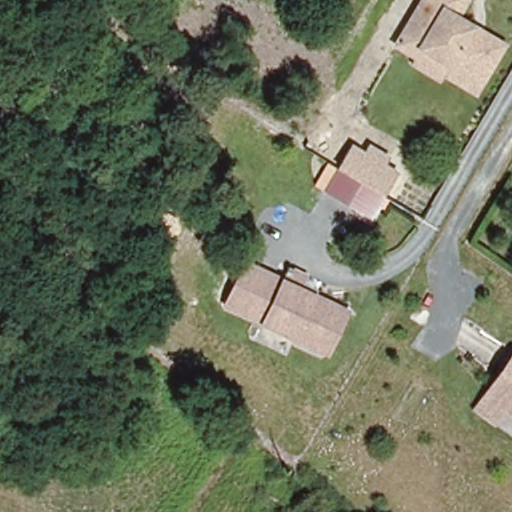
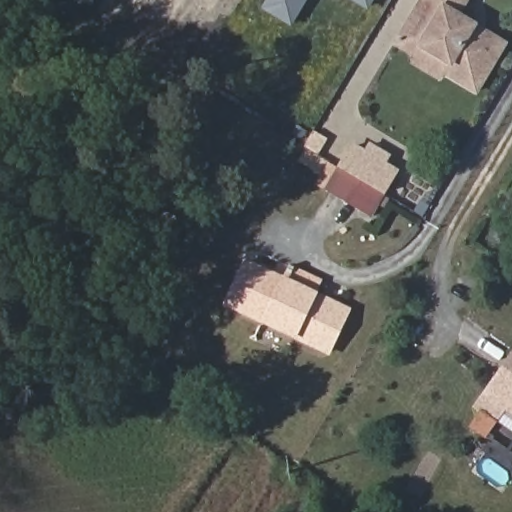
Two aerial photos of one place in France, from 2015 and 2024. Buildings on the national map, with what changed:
new [(291,26),(261,9),(266,0),(307,0),(291,26)]
new [(367,10),(349,0),(373,0),(367,10)]
unchanged [(425,0),(468,0),(460,15),(507,43),(484,82),(404,35),(425,0)]
unchanged [(484,82),(479,91),(446,71),(443,78),(416,62),(420,56),(399,44),(404,35),(484,82)]
unchanged [(363,154),(368,146),(368,145),(387,156),(386,158),(382,165),(394,172),(382,194),(345,173),(338,169),(351,147),(363,154)]
unchanged [(337,168),(338,169),(345,173),(382,194),(383,194),(370,217),(325,191),(337,168)]
unchanged [(281,269),(300,277),(296,286),(310,292),(308,297),(341,311),(322,354),(219,308),(238,266),(275,282),(281,269)]
unchanged [(510,349),(512,350),(512,410),(483,393),(510,349)]

